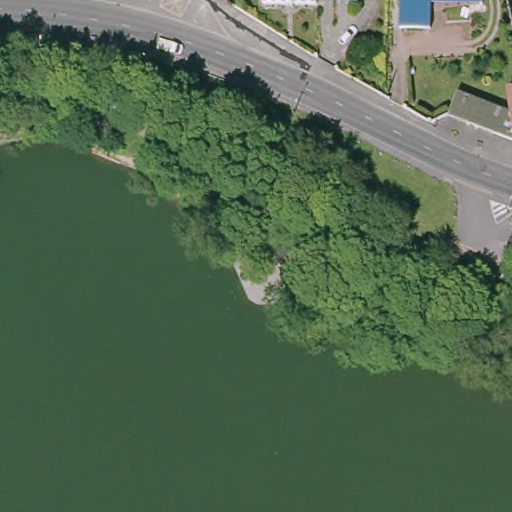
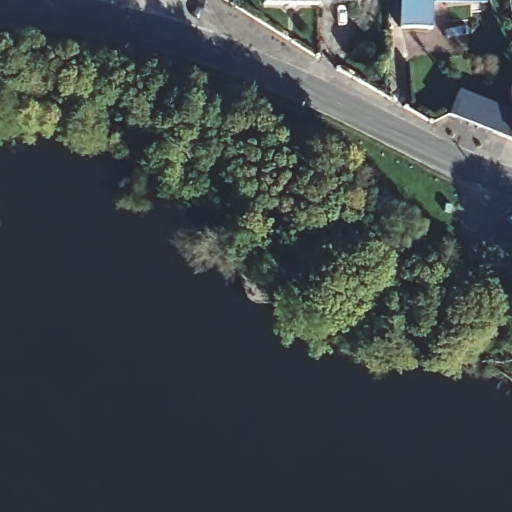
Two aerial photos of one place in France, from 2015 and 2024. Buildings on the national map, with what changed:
unchanged [(320,7),(321,14),(266,14),(265,0),(358,0),(358,6),(320,7)]
unchanged [(400,33),(400,0),(430,0),(430,34),(400,33)]
unchanged [(448,0),(481,0),(481,1),(448,0)]
unchanged [(461,90),(512,110),(512,139),(452,115),(461,90)]
unchanged [(512,91),(512,92),(511,91),(512,91)]

